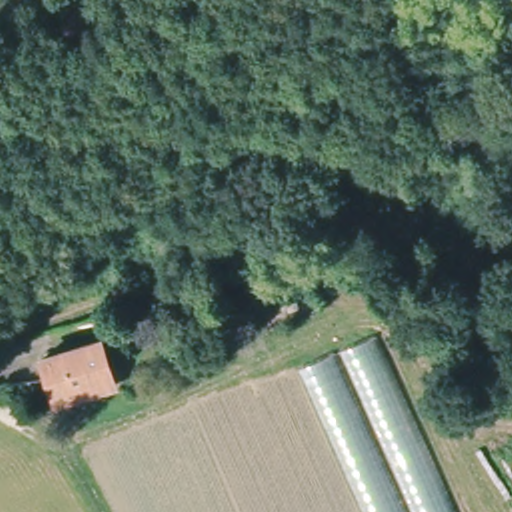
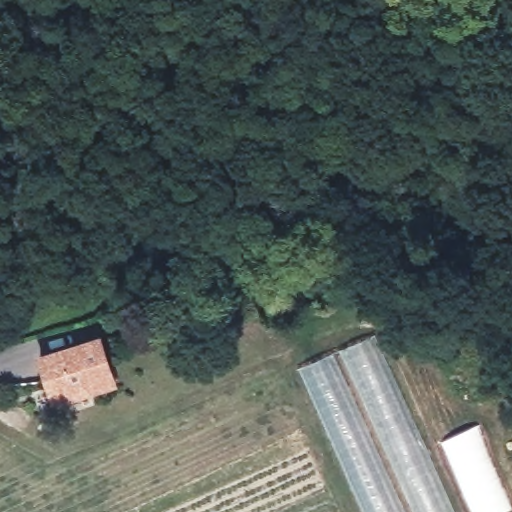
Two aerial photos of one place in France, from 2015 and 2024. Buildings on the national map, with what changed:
unchanged [(456,512),(412,512),(387,453),(341,351),(377,334),(456,512)]
unchanged [(86,391),(84,385),(52,395),(48,380),(42,382),(36,361),(94,343),(107,385),(86,391)]
unchanged [(408,512),(364,512),(300,368),(337,352),(408,512)]
new [(452,440),(476,429),(510,512),(509,512),(482,512),(472,484),(466,487),(452,454),(460,451),(452,440)]

